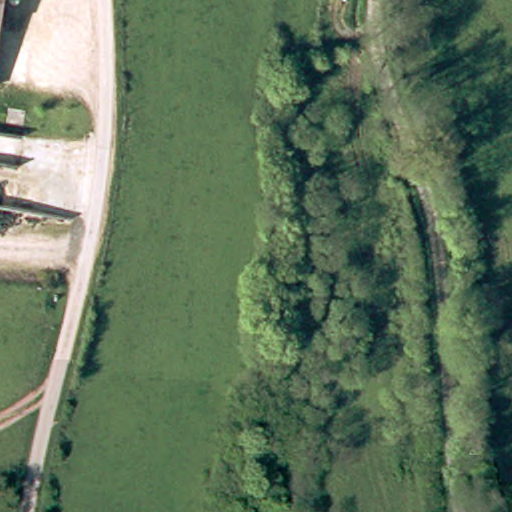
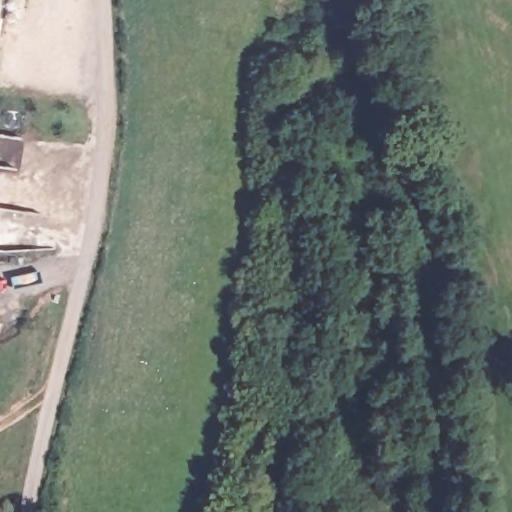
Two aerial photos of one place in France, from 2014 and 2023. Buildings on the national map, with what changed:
unchanged [(4,0),(2,14),(0,26),(0,0),(4,0)]

